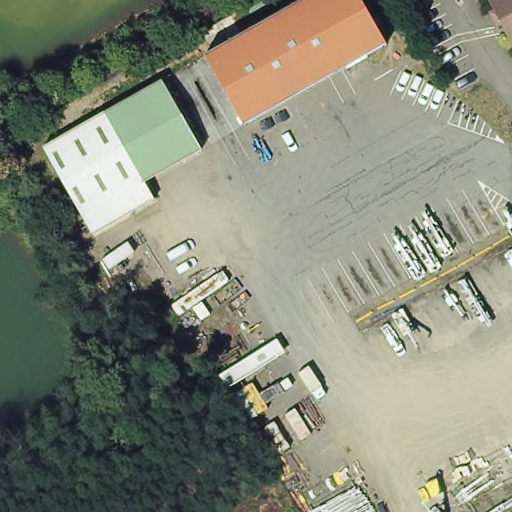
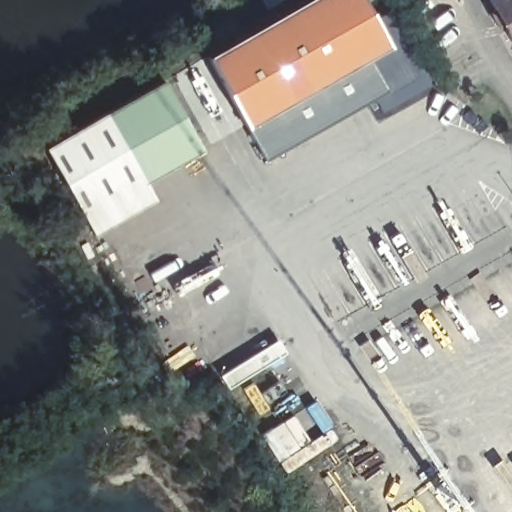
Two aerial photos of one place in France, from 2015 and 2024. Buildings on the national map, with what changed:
unchanged [(205,51),(293,0),(365,0),(372,13),(378,9),(383,18),(377,21),(387,40),(245,122),(205,51)]
unchanged [(498,0),(512,0),(512,48),(488,6),(498,0)]
new [(368,56),(388,90),(265,161),(245,127),(368,56)]
unchanged [(106,114),(162,81),(203,151),(147,184),(106,114)]
unchanged [(157,202),(97,238),(47,150),(106,114),(147,184),(157,202)]

